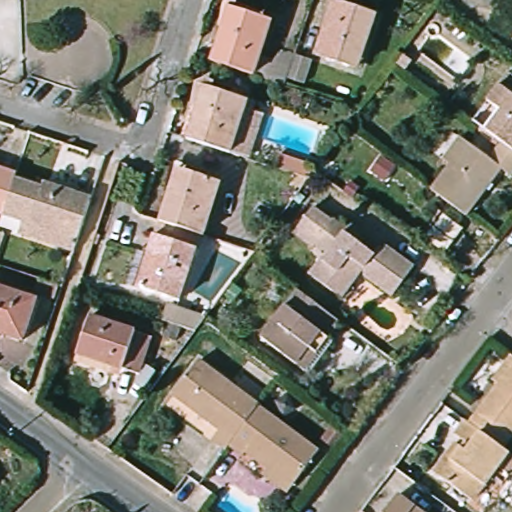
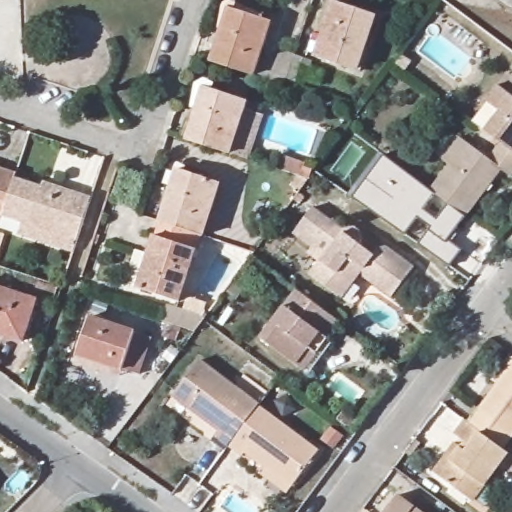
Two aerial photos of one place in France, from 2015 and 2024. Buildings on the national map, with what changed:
unchanged [(354,69),(312,55),(330,2),(371,14),(354,69)]
unchanged [(226,8),(268,21),(257,55),(288,65),(282,84),(209,61),(226,8)]
unchanged [(299,83),(286,79),(293,55),(307,59),(299,83)]
unchanged [(504,145),(487,133),(474,123),(510,75),(512,76),(512,151),(504,145)]
unchanged [(206,86),(249,99),(232,151),(189,138),(206,86)]
unchanged [(445,163),(460,141),(467,146),(490,163),(504,145),(512,151),(512,178),(503,171),(467,218),(434,193),(452,168),(445,163)]
new [(465,216),(447,240),(462,252),(450,266),(420,244),(430,232),(432,228),(418,218),(405,234),(353,197),(385,155),(434,193),(422,209),(438,221),(449,204),(465,216)]
unchanged [(180,163),(222,177),(204,229),(162,216),(180,163)]
unchanged [(12,178),(0,215),(0,169),(14,173),(12,178)]
unchanged [(291,186),(296,172),(312,177),(302,190),(291,186)]
unchanged [(12,178),(38,186),(40,181),(87,197),(70,252),(17,234),(21,222),(0,215),(12,178)]
unchanged [(333,291),(312,273),(323,259),(325,261),(339,242),(327,233),(316,247),(299,234),(318,210),(334,222),(335,221),(347,230),(353,225),(361,232),(363,241),(360,244),(375,255),(380,249),(389,248),(415,267),(394,296),(367,276),(365,267),(343,297),(333,291)]
unchanged [(204,229),(181,297),(140,284),(162,216),(204,229)]
unchanged [(51,292),(31,285),(34,275),(54,282),(51,292)]
unchanged [(0,329),(0,283),(34,294),(20,335),(0,329)]
unchanged [(298,363),(263,336),(299,289),(342,321),(329,338),(306,369),(298,363)]
unchanged [(179,304),(207,312),(206,314),(197,326),(175,318),(179,304)]
unchanged [(132,375),(70,354),(82,316),(144,337),(132,375)]
unchanged [(512,357),(512,429),(498,448),(464,423),(492,384),(487,380),(507,353),(512,357)]
unchanged [(213,438),(220,427),(174,394),(200,359),(259,404),(230,443),(227,447),(213,438)]
unchanged [(263,473),(269,466),(248,450),(245,455),(230,443),(259,404),(321,450),(293,485),(288,492),(263,473)]
unchanged [(498,448),(502,452),(468,500),(436,476),(429,471),(450,443),(457,448),(461,442),(450,434),(460,420),(464,423),(498,448)]
unchanged [(428,512),(381,512),(398,490),(428,512)]

